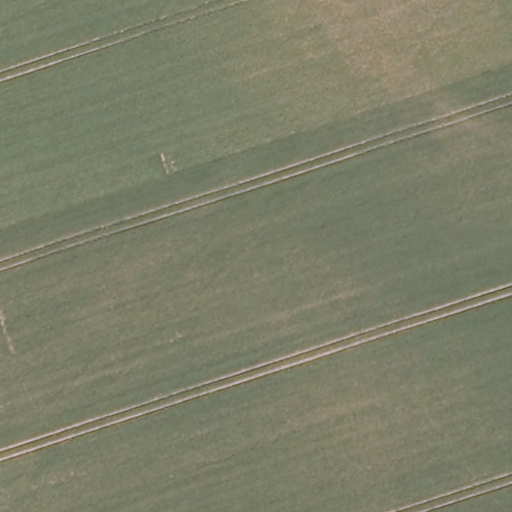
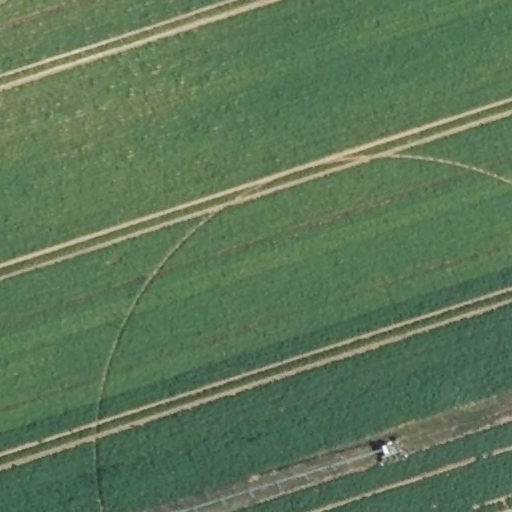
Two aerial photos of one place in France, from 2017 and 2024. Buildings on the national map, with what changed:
[]

